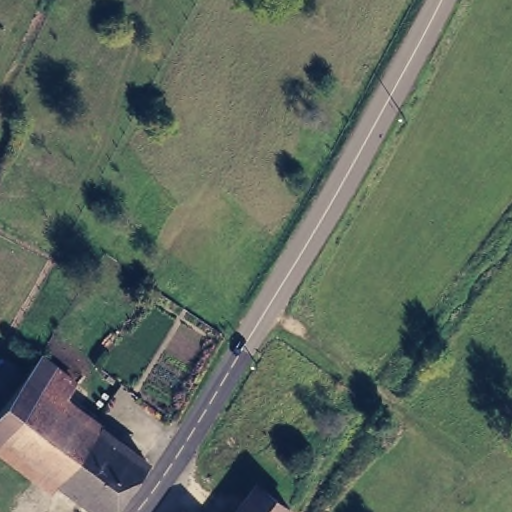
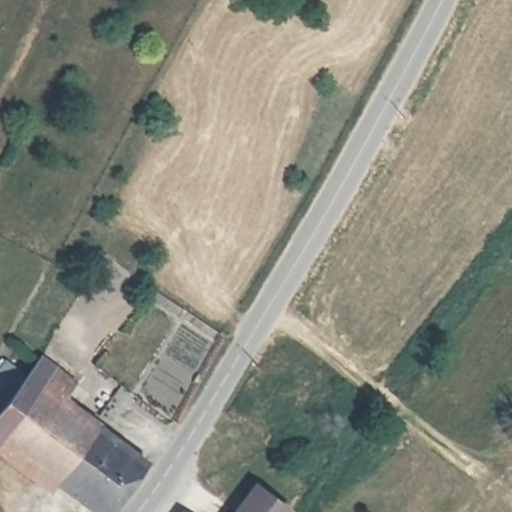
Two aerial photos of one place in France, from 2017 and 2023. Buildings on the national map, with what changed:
unchanged [(143,467),(116,512),(85,512),(0,450),(0,407),(25,373),(32,363),(69,388),(59,403),(143,467)]
unchanged [(263,488),(295,512),(245,512),(263,488)]

